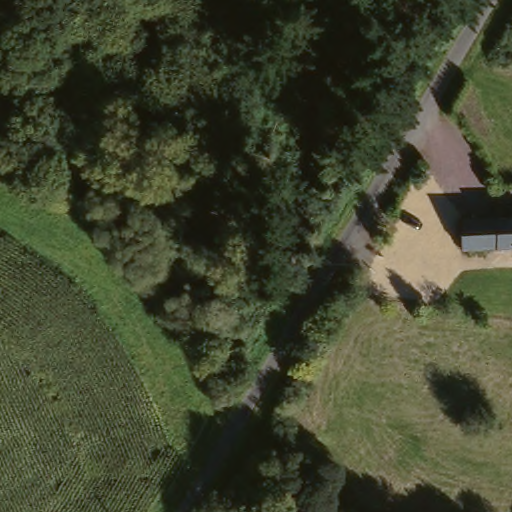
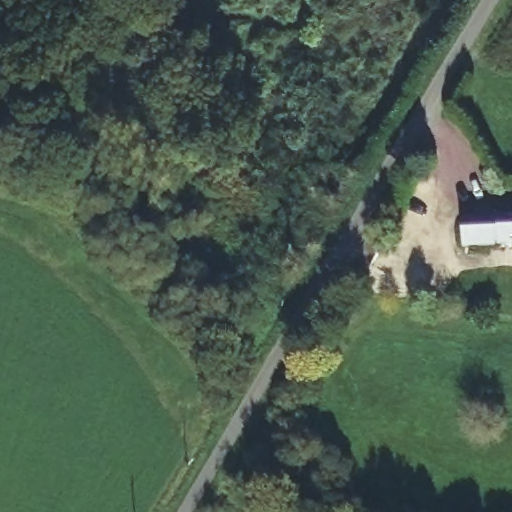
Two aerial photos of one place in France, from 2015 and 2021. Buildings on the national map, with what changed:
unchanged [(462,214),(497,214),(496,210),(512,210),(512,243),(463,245),(462,214)]

